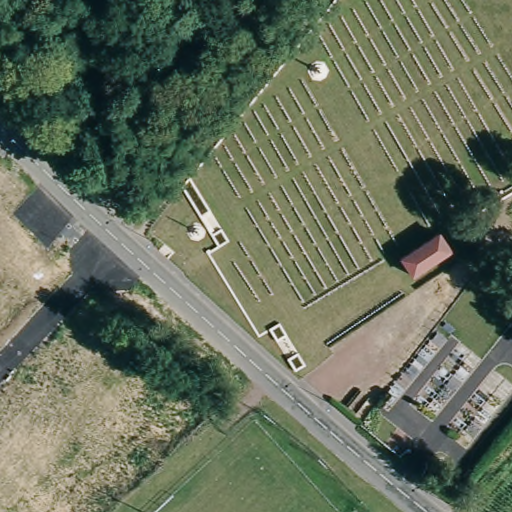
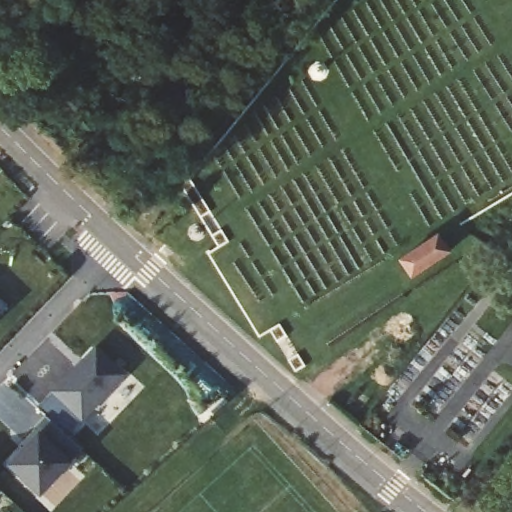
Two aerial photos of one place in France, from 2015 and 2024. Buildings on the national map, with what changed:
unchanged [(435,234),(450,258),(410,280),(396,255),(435,234)]
new [(127,375),(84,420),(55,393),(77,369),(80,368),(85,365),(85,362),(98,347),(127,375)]
new [(29,447),(25,443),(36,431),(35,430),(48,416),(84,451),(42,495),(12,466),(29,447)]

